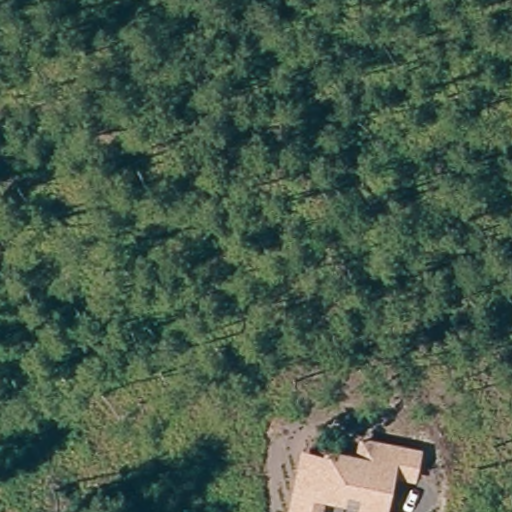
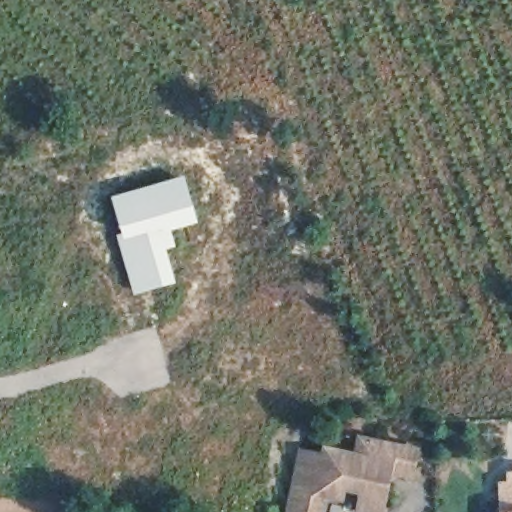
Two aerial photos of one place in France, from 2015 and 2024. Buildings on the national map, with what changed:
new [(122,235),(112,200),(182,178),(197,226),(170,233),(175,248),(166,251),(176,285),(134,296),(116,237),(122,235)]
unchanged [(322,451),(323,445),(355,453),(358,436),(422,448),(415,481),(395,476),(387,512),(355,512),(358,497),(346,494),(344,502),(325,499),(322,512),(286,512),(299,447),(322,451)]
new [(508,493),(508,483),(512,483),(512,512),(500,512),(500,493),(508,493)]

